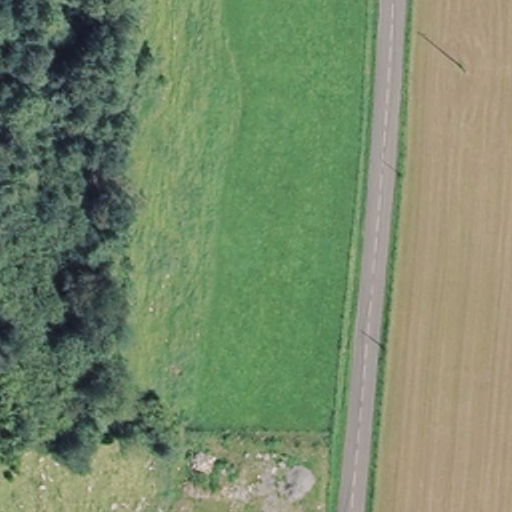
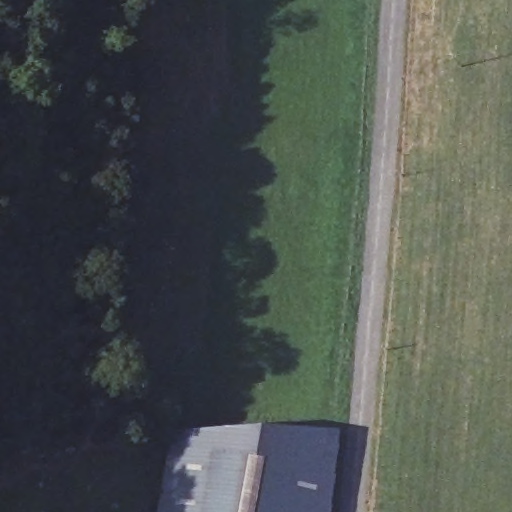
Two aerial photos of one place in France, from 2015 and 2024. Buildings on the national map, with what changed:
new [(178,431),(165,512),(154,512),(168,431),(178,431)]
new [(340,432),(330,512),(165,512),(178,431),(340,432)]

